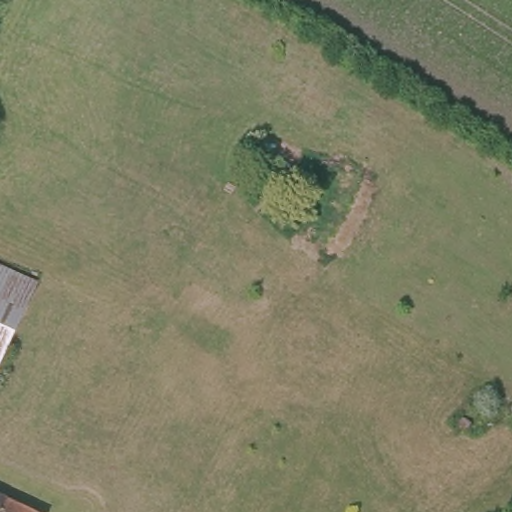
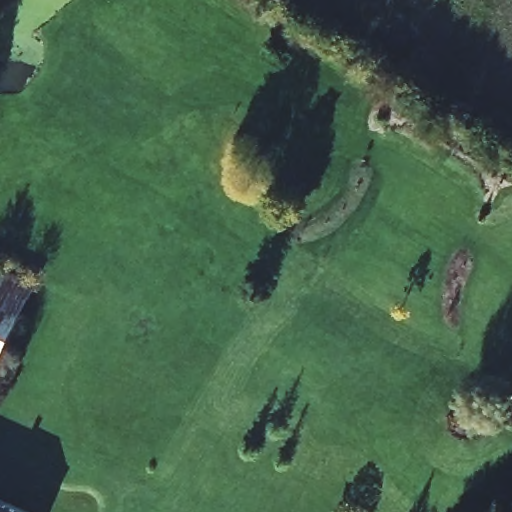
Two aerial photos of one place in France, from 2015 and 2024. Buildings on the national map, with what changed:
unchanged [(0,363),(0,260),(40,280),(0,363)]
unchanged [(0,512),(0,494),(37,512),(0,512)]

